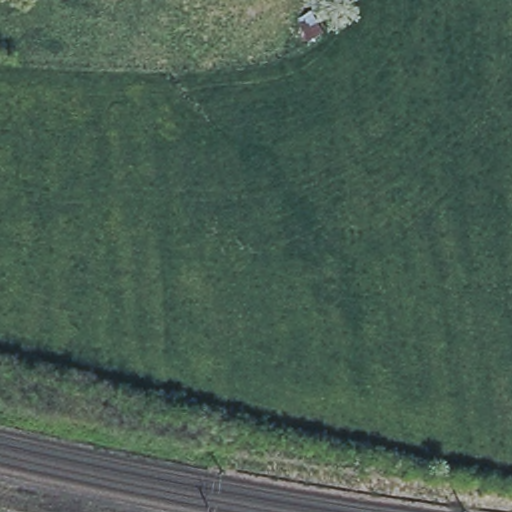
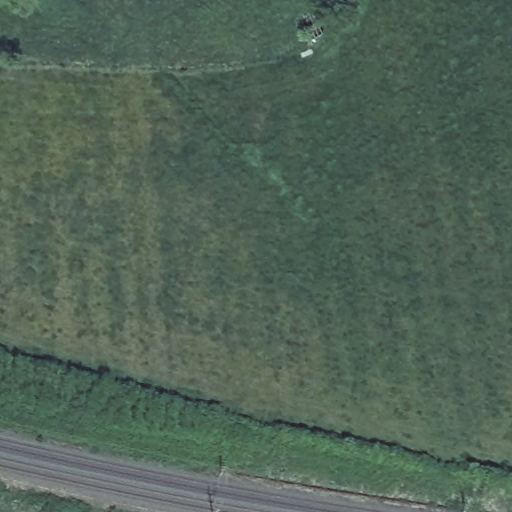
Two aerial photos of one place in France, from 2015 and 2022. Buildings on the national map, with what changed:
unchanged [(317,5),(332,29),(312,45),(293,21),(317,5)]

